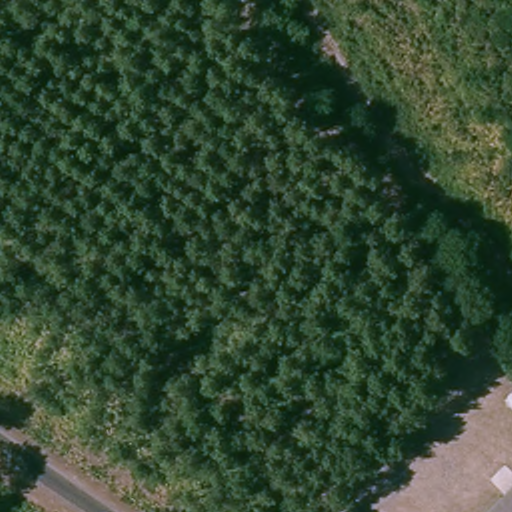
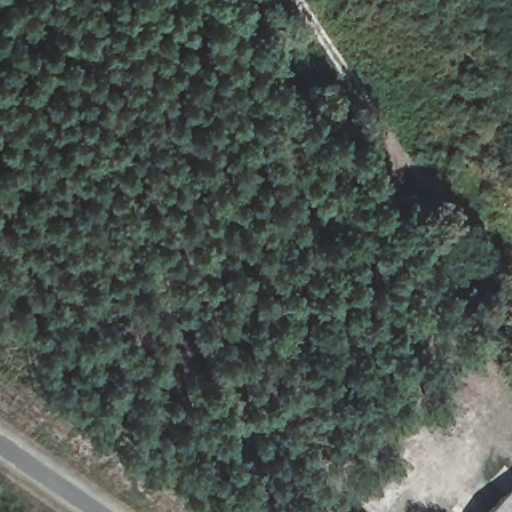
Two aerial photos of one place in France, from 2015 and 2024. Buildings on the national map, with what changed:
unchanged [(512,490),(512,512),(491,512),(506,496),(512,490)]

